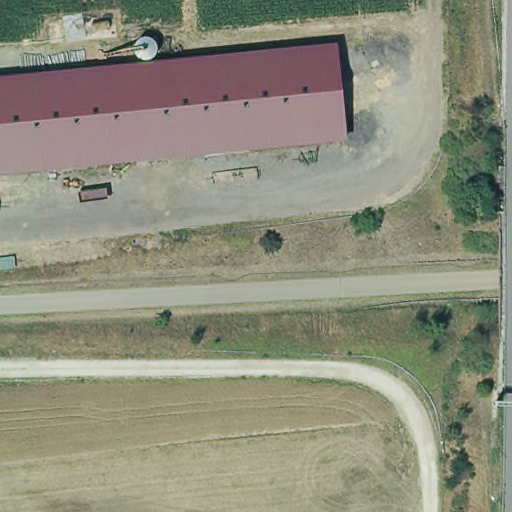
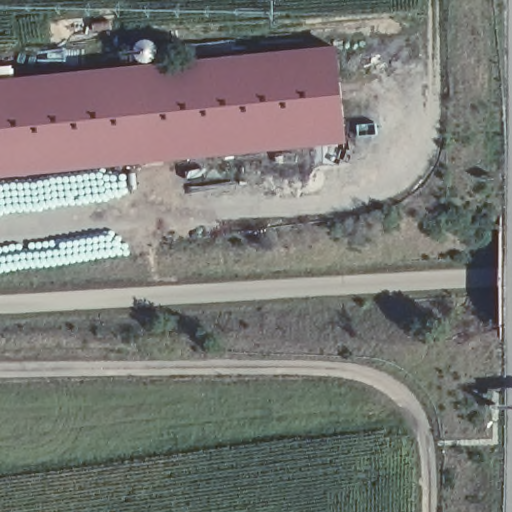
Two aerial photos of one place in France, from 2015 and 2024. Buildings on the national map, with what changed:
unchanged [(347,141),(0,174),(0,76),(340,44),(347,141)]

